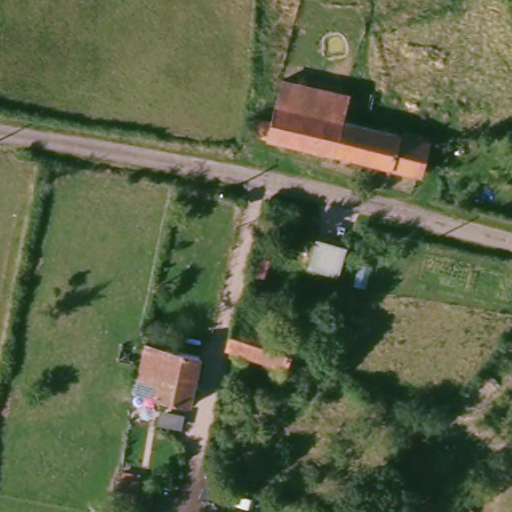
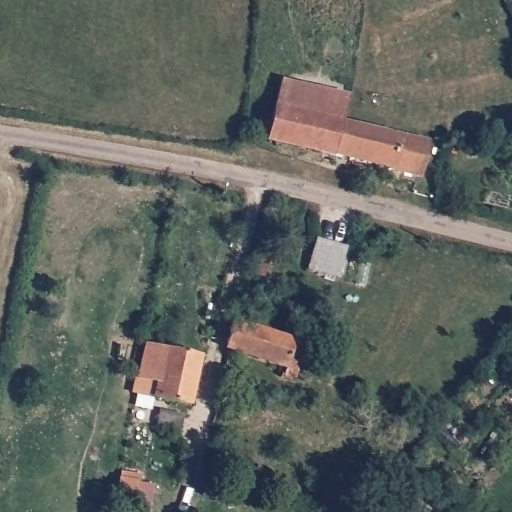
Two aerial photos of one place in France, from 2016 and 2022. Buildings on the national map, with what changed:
unchanged [(280,112),(283,89),(348,99),(346,123),(280,112)]
unchanged [(426,171),(263,145),(264,121),(279,123),(280,112),(346,123),(409,134),(434,134),(426,171)]
unchanged [(301,241),(331,245),(326,274),(296,270),(301,241)]
unchanged [(309,341),(299,384),(283,379),(286,366),(226,352),(229,317),(309,341)]
unchanged [(148,390),(158,338),(193,346),(183,396),(148,390)]

